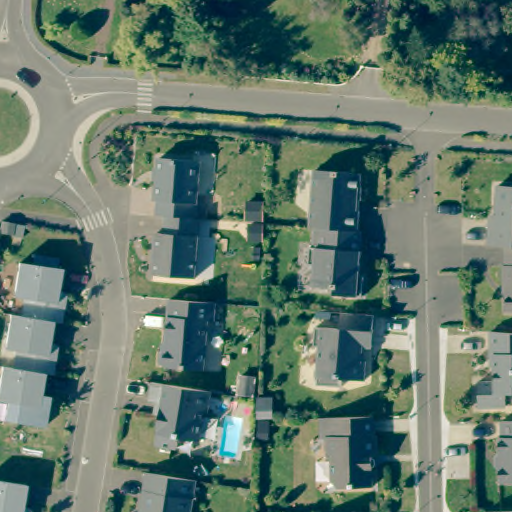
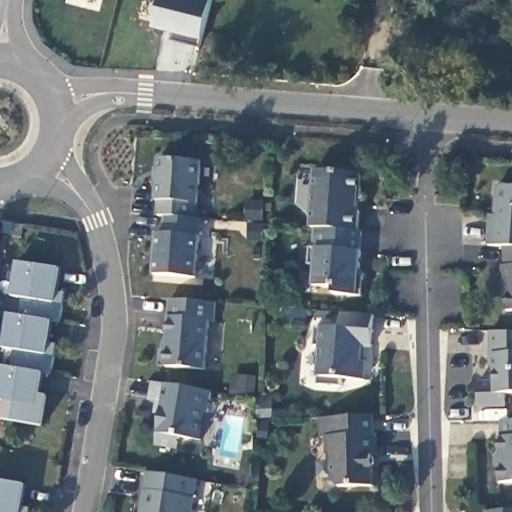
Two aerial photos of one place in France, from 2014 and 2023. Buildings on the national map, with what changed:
new [(202,36),(201,45),(173,39),(175,30),(153,23),(160,0),(212,0),(202,36)]
unchanged [(200,165),(195,222),(191,222),(165,220),(158,219),(159,205),(156,205),(160,162),(200,165)]
unchanged [(315,175),(361,178),(362,205),(357,204),(356,215),(360,216),(358,235),(324,232),(315,231),(311,231),(315,175)]
unchanged [(497,190),(512,191),(512,251),(505,250),(488,249),(490,229),(495,230),(497,190)]
unchanged [(191,222),(195,222),(200,222),(196,282),(154,279),(157,237),(165,238),(165,220),(191,222)]
unchanged [(324,232),(358,235),(361,235),(360,255),(361,255),(360,276),(363,281),(362,301),(335,299),(335,292),(313,290),(315,270),(308,269),(310,251),(314,252),(315,231),(324,232)]
unchanged [(505,250),(512,251),(512,315),(506,315),(506,288),(503,288),(503,270),(506,270),(505,250)]
unchanged [(59,273),(55,295),(64,296),(59,326),(50,325),(41,323),(20,320),(23,302),(12,300),(18,266),(59,273)]
unchanged [(216,307),(215,325),(209,325),(205,374),(166,371),(161,366),(162,355),(166,352),(170,303),(216,307)]
unchanged [(377,351),(368,351),(366,365),(371,365),(370,385),(347,383),(347,391),(322,389),(325,350),(319,350),(320,331),(346,333),(347,316),(380,319),(377,351)]
unchanged [(20,320),(41,323),(50,325),(46,347),(55,348),(50,378),(42,377),(36,376),(11,371),(14,353),(4,352),(9,318),(10,318),(20,320)]
unchanged [(512,398),(505,398),(506,410),(478,411),(478,386),(495,386),(495,360),(491,360),(490,335),(512,337),(512,398)]
unchanged [(11,371),(36,376),(42,377),(38,399),(46,400),(41,430),(2,423),(5,405),(0,405),(0,373),(0,370),(11,371)]
unchanged [(192,392),(211,395),(208,417),(203,416),(199,445),(179,441),(176,453),(155,450),(162,407),(150,405),(152,386),(192,392)]
unchanged [(373,421),(374,440),(376,440),(377,460),(372,460),(373,490),(339,491),(333,485),(332,461),(327,457),(327,442),(321,442),(320,422),(373,421)]
unchanged [(512,487),(500,487),(499,442),(501,441),(501,425),(512,425),(512,487)]
unchanged [(193,512),(142,512),(148,476),(197,485),(193,512)]
unchanged [(25,510),(32,512),(0,512),(0,484),(28,488),(25,510)]

